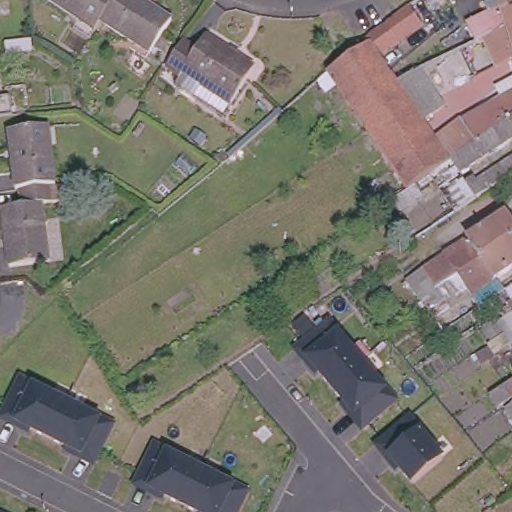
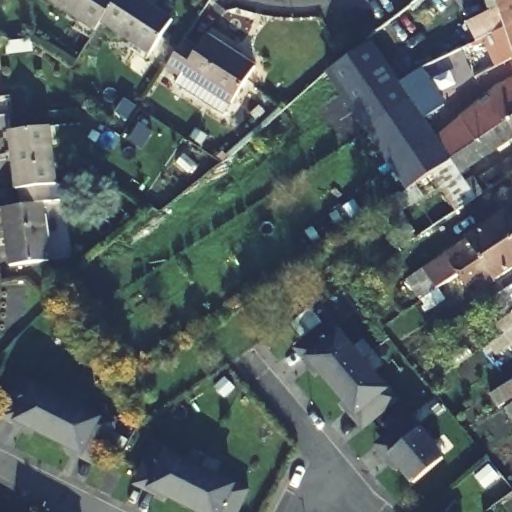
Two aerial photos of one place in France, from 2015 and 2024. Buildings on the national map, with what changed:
unchanged [(100,24),(96,31),(48,0),(116,0),(100,24)]
unchanged [(116,0),(141,0),(172,21),(148,55),(100,24),(116,0)]
unchanged [(375,55),(365,43),(362,38),(413,0),(449,0),(375,55)]
unchanged [(503,26),(495,0),(512,0),(512,24),(503,26)]
unchanged [(503,26),(512,24),(512,55),(503,26)]
unchanged [(249,67),(225,103),(175,71),(173,74),(160,66),(178,40),(190,48),(200,34),(249,67)]
unchanged [(407,103),(364,131),(321,70),(365,43),(375,55),(376,58),(388,74),(393,82),(407,103)]
unchanged [(448,97),(445,90),(440,82),(430,89),(407,103),(393,82),(417,70),(421,76),(440,66),(452,85),(455,92),(448,97)]
unchanged [(446,158),(405,188),(364,131),(407,103),(430,89),(441,109),(422,123),(433,139),(446,158)]
unchanged [(500,122),(490,106),(505,95),(512,93),(512,114),(500,122)]
unchanged [(488,102),(490,106),(500,122),(447,158),(446,158),(433,139),(488,102)]
unchanged [(447,158),(500,122),(512,114),(512,138),(457,174),(446,158),(447,158)]
unchanged [(10,264),(1,207),(21,204),(20,188),(13,189),(6,131),(45,125),(53,183),(49,184),(51,200),(40,202),(49,258),(10,264)]
unchanged [(488,171),(509,157),(512,161),(512,175),(496,185),(488,171)]
unchanged [(460,276),(447,257),(506,219),(512,227),(512,240),(460,276)]
unchanged [(473,295),(460,276),(512,240),(512,270),(473,295)]
unchanged [(435,309),(426,298),(420,289),(433,279),(440,288),(449,299),(435,309)]
unchanged [(510,331),(503,321),(512,315),(512,334),(510,331)]
unchanged [(358,411),(355,414),(307,358),(311,354),(301,342),(309,335),(330,318),(352,346),(350,348),(351,349),(372,373),(374,371),(377,376),(397,399),(372,421),(369,423),(358,411)]
unchanged [(100,416),(115,424),(97,464),(79,458),(0,421),(0,415),(16,374),(100,416)]
unchanged [(392,450),(382,438),(383,437),(410,414),(427,434),(433,442),(431,444),(443,458),(426,472),(413,483),(388,453),(392,450)]
unchanged [(238,512),(199,512),(150,488),(152,483),(137,476),(155,443),(186,459),(185,462),(205,472),(215,477),(216,474),(249,490),(240,508),(238,512)]

